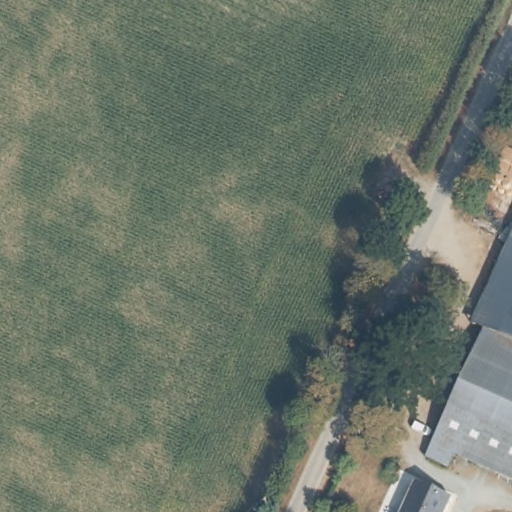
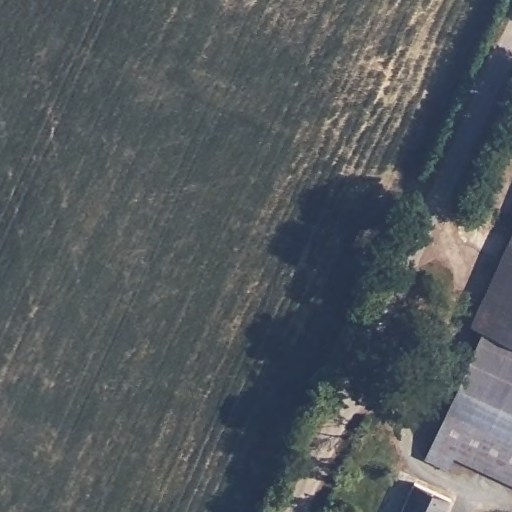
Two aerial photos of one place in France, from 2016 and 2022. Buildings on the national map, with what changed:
unchanged [(459,411),(494,337),(483,332),(512,269),(512,436),(459,411)]
unchanged [(466,460),(459,475),(435,464),(442,449),(459,411),(512,436),(512,482),(466,460)]
unchanged [(441,512),(401,512),(413,487),(446,501),(441,512)]

